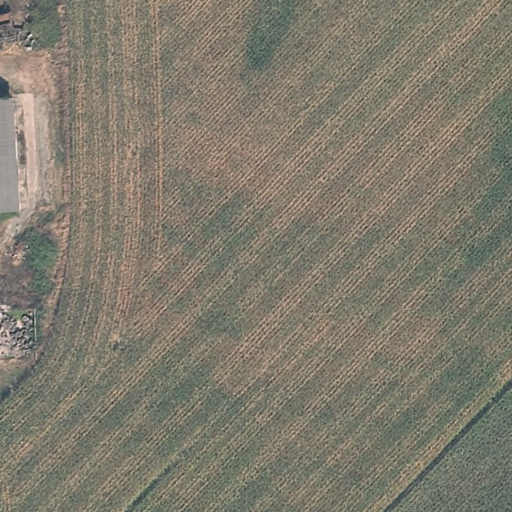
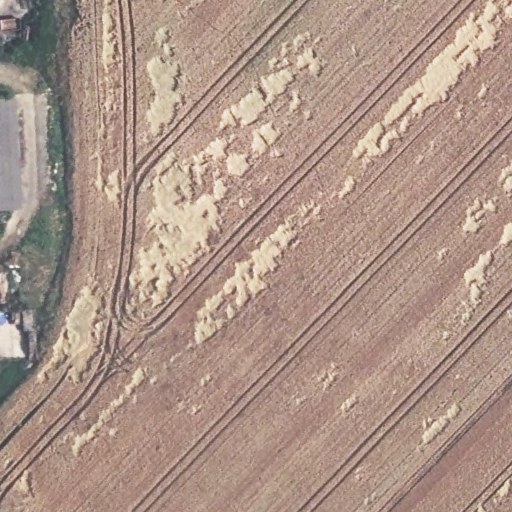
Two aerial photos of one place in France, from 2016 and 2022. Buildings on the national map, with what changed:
unchanged [(18,163),(21,212),(0,213),(0,97),(15,96),(18,163)]

